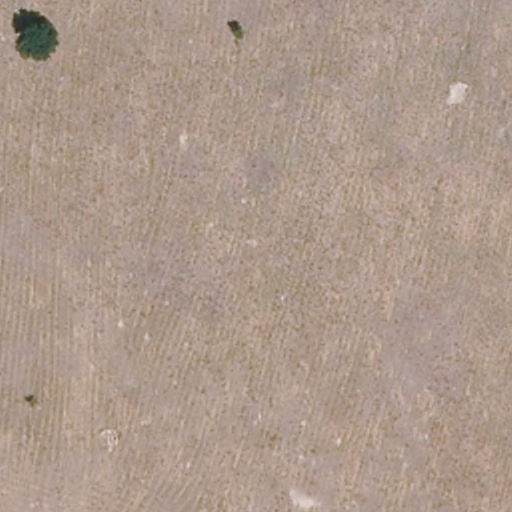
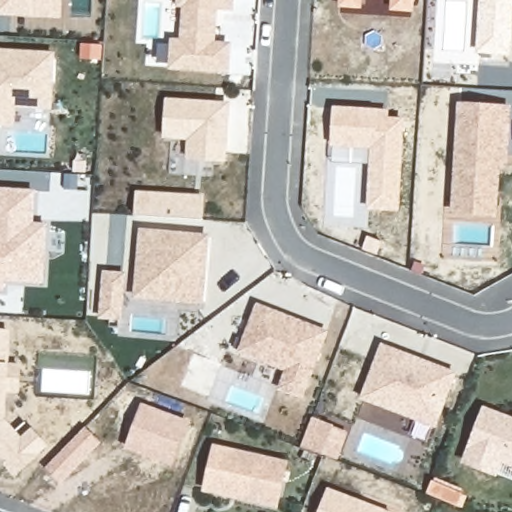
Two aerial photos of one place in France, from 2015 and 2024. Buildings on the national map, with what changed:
new [(0,15),(0,0),(39,0),(60,0),(59,18),(39,16),(0,15)]
new [(215,10),(212,47),(230,49),(227,74),(172,70),(174,45),(184,45),(186,9),(180,8),(180,0),(231,0),(231,10),(215,10)]
new [(344,0),(364,0),(363,8),(344,7),(344,0)]
new [(396,0),(415,0),(415,10),(396,10),(396,0)]
new [(483,0),(512,0),(512,39),(511,56),(480,54),(483,0)]
new [(101,47),(101,61),(81,60),(82,46),(101,47)]
new [(50,107),(0,104),(0,52),(52,55),(50,107)]
new [(230,104),(229,115),(226,161),(190,159),(191,139),(166,137),(168,100),(217,104),(230,104)]
new [(508,168),(500,168),(497,219),(451,216),(457,102),(512,105),(508,168)]
new [(17,125),(0,124),(0,104),(19,105),(17,125)]
new [(390,108),(390,116),(406,117),(400,211),(366,209),(369,150),(330,146),(332,105),(390,108)]
new [(36,190),(34,221),(49,222),(45,284),(6,281),(5,293),(0,293),(0,187),(36,190)]
new [(205,220),(192,220),(151,217),(137,216),(139,195),(152,195),(192,198),(207,199),(205,220)]
new [(142,281),(145,234),(209,238),(208,265),(207,270),(206,303),(171,300),(141,299),(142,281)]
new [(328,331),(303,400),(277,390),(283,372),(237,352),(256,302),(328,331)]
new [(14,466),(0,451),(0,331),(12,331),(11,348),(9,365),(5,365),(22,366),(21,388),(8,388),(7,402),(32,425),(44,438),(34,448),(14,466)]
new [(386,345),(457,373),(438,425),(366,397),(386,345)]
new [(190,421),(172,466),(124,448),(141,402),(190,421)]
new [(512,419),(512,462),(503,458),(497,472),(467,461),(472,446),(487,409),(512,419)]
new [(338,460),(301,446),(312,417),(349,431),(338,460)]
new [(60,482),(44,468),(86,426),(102,442),(60,482)]
new [(265,501),(244,496),(245,492),(238,490),(237,495),(209,488),(219,445),(291,463),(286,481),(281,505),(265,501)]
new [(327,487),(393,511),(393,512),(317,512),(327,487)]

